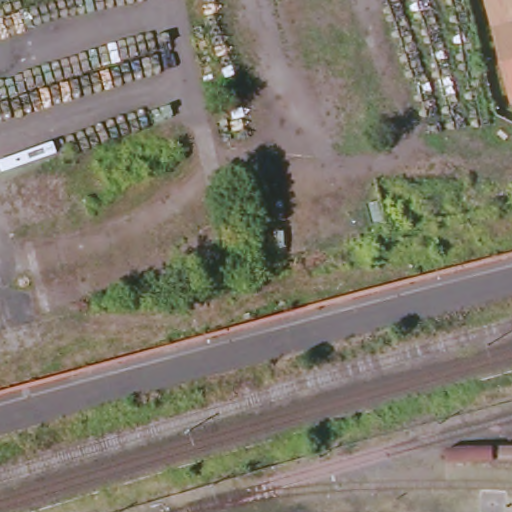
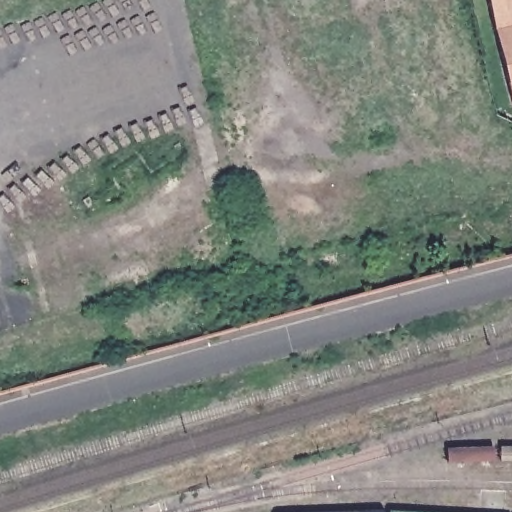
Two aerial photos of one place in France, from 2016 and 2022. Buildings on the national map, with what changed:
unchanged [(512,103),(486,0),(512,0),(512,103)]

